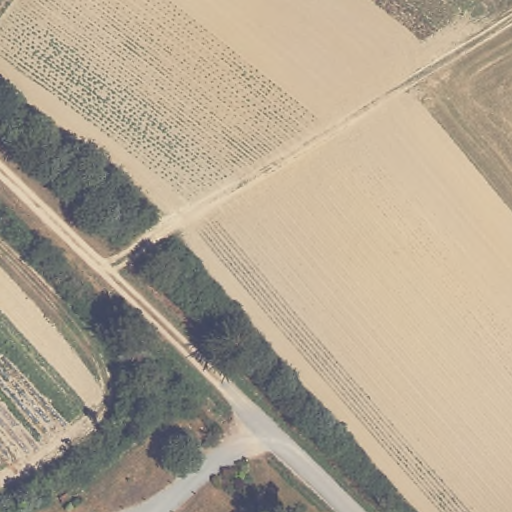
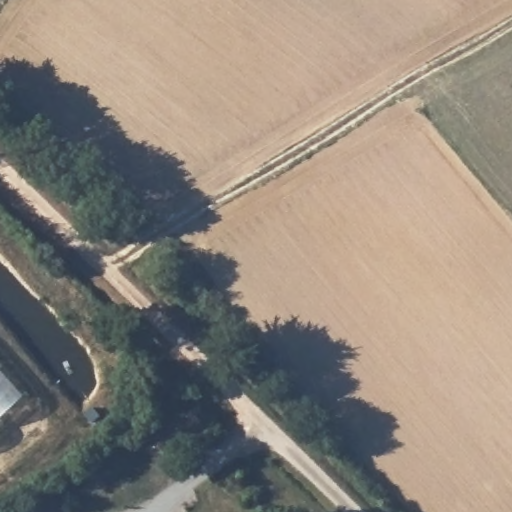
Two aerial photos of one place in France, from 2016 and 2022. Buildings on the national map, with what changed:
new [(0,419),(0,370),(25,397),(0,419)]

